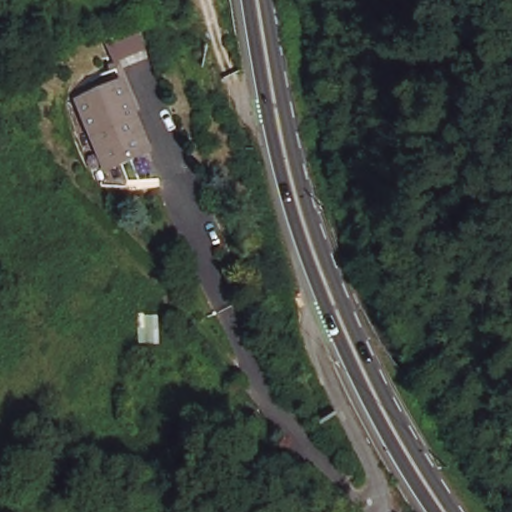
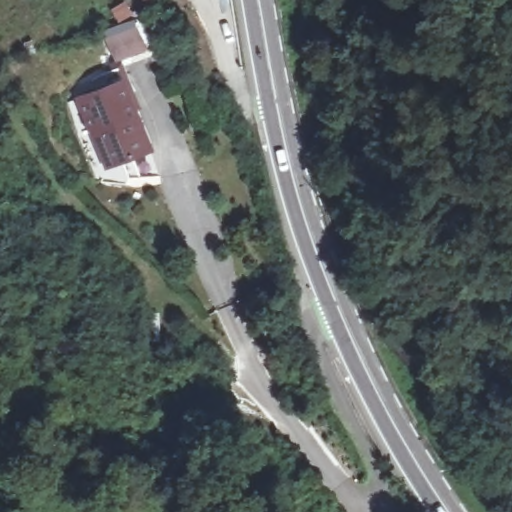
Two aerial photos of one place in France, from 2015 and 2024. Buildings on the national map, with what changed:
unchanged [(120,77),(152,159),(141,166),(102,87),(120,77)]
unchanged [(141,166),(114,173),(102,140),(95,141),(81,105),(92,101),(90,91),(102,87),(141,166)]

